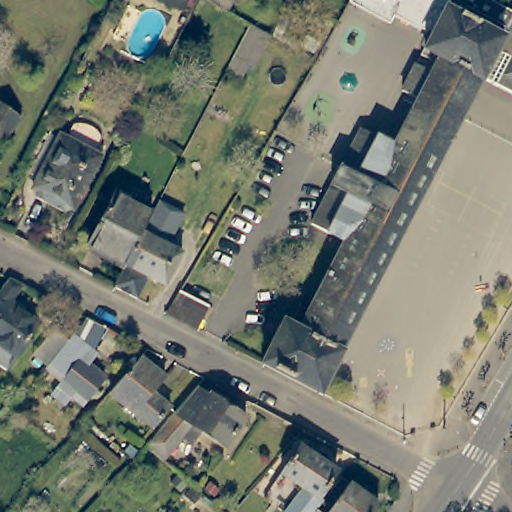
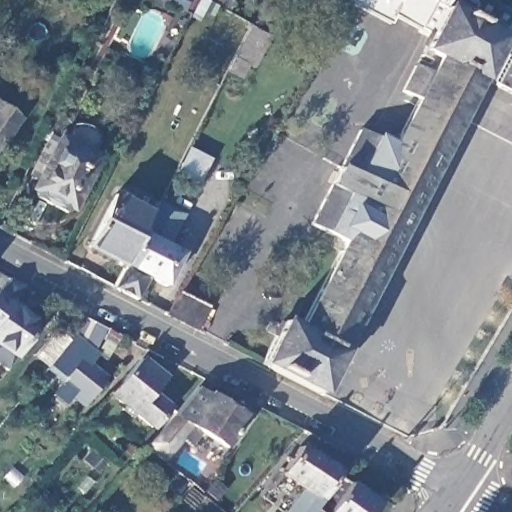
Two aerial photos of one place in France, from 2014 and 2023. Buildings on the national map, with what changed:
unchanged [(342,6),(346,0),(481,0),(503,13),(512,18),(512,95),(509,99),(477,82),(316,398),(257,367),(279,325),(295,333),(341,245),(308,227),(357,133),(390,149),(414,104),(397,94),(410,69),(426,78),(431,68),(415,60),(427,37),(416,32),(415,33),(390,20),(385,28),(342,6)]
unchanged [(282,35),(274,55),(266,51),(274,31),(282,35)]
unchanged [(264,49),(247,81),(225,71),(242,37),(264,49)]
unchanged [(22,121),(0,152),(0,104),(22,121)]
unchanged [(101,157),(74,210),(37,190),(62,137),(101,157)]
unchanged [(88,248),(113,198),(149,217),(124,266),(88,248)]
unchanged [(113,289),(124,266),(149,217),(156,202),(181,215),(165,246),(180,254),(164,287),(148,279),(137,301),(113,289)]
unchanged [(11,302),(39,321),(9,367),(0,362),(0,289),(10,276),(24,283),(11,302)]
unchanged [(181,291),(211,305),(198,329),(168,314),(181,291)]
unchanged [(96,359),(99,362),(91,372),(106,385),(87,409),(75,399),(64,412),(53,402),(63,390),(47,377),(49,374),(34,362),(56,337),(70,348),(75,342),(81,335),(82,334),(88,327),(108,337),(103,346),(96,359)]
unchanged [(154,433),(111,396),(142,362),(166,383),(150,400),(170,414),(154,433)]
unchanged [(210,399),(211,396),(245,419),(225,449),(201,434),(192,447),(183,440),(163,464),(147,450),(197,390),(210,399)]
unchanged [(330,492),(326,490),(320,497),(283,472),(300,445),(337,471),(329,483),(335,486),(330,492)]
unchanged [(376,512),(316,512),(330,492),(335,486),(342,477),(380,506),(376,512)]

